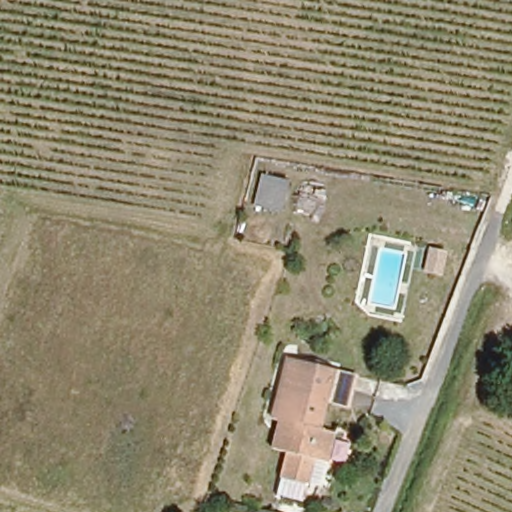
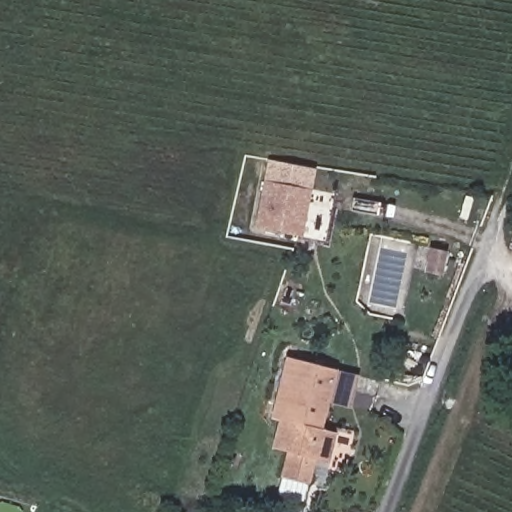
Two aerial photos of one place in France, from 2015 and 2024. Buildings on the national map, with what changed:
new [(265,183),(310,192),(301,239),(256,230),(265,183)]
unchanged [(277,494),(281,479),(287,452),(272,450),(280,416),(273,414),(286,356),(334,367),(318,426),(333,430),(342,432),(340,446),(332,445),(326,462),(322,481),(307,478),(305,484),(302,500),(277,494)]

